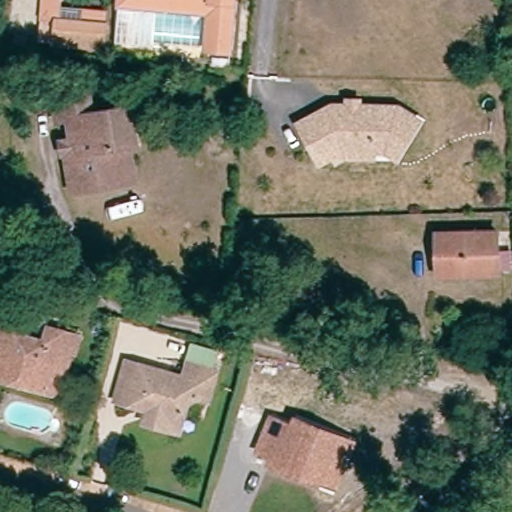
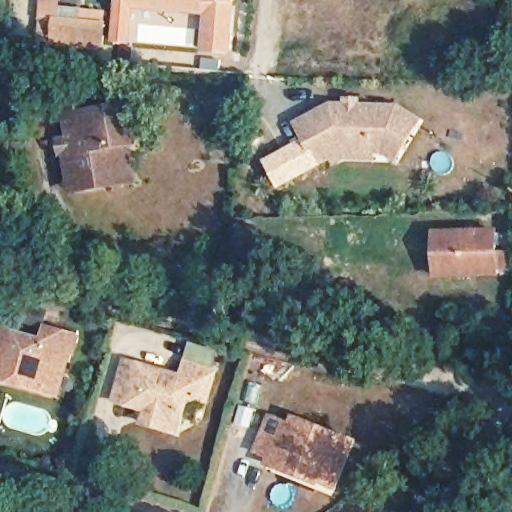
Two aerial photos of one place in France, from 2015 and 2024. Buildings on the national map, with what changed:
unchanged [(79,20),(81,10),(107,10),(105,29),(104,53),(39,47),(43,0),(57,0),(56,19),(79,20)]
unchanged [(202,53),(205,15),(116,7),(116,0),(238,0),(233,55),(202,53)]
unchanged [(511,24),(511,0),(512,0),(512,23),(511,24)]
unchanged [(71,185),(67,161),(63,162),(61,147),(73,145),(70,126),(59,127),(54,93),(88,87),(94,121),(131,115),(138,152),(129,154),(133,175),(135,190),(113,194),(91,197),(73,200),(71,185)]
unchanged [(331,163),(329,158),(314,165),(294,125),(322,111),(329,107),(344,107),(344,101),(354,102),(354,108),(394,109),(416,123),(393,161),(370,147),(370,160),(339,159),(331,163)]
new [(314,165),(276,185),(263,161),(302,141),(314,165)]
unchanged [(436,276),(434,232),(495,230),(497,275),(436,276)]
unchanged [(0,374),(0,322),(43,335),(47,324),(76,333),(71,350),(68,350),(64,363),(56,390),(46,387),(0,374)]
unchanged [(145,428),(149,411),(151,404),(119,395),(131,356),(186,372),(190,356),(191,341),(223,351),(219,365),(211,396),(192,391),(186,407),(178,436),(145,428)]
unchanged [(287,475),(270,468),(273,461),(258,455),(272,420),(296,430),(299,423),(334,437),(352,445),(344,465),(334,489),(319,483),(317,487),(287,475)]

